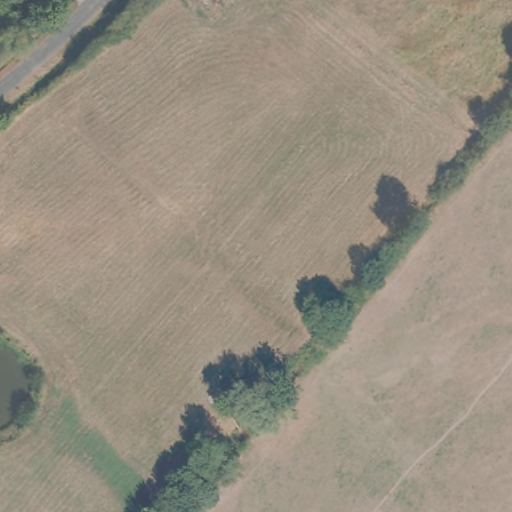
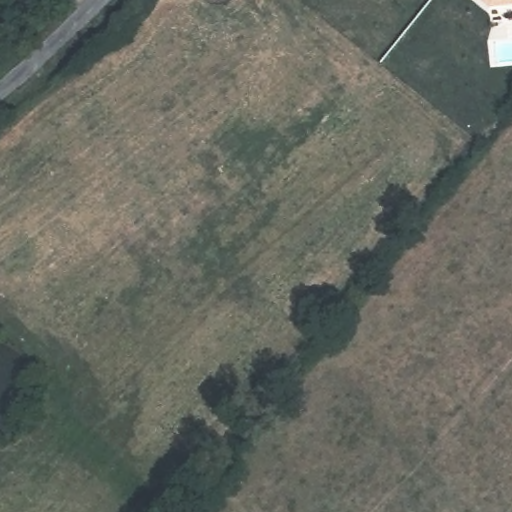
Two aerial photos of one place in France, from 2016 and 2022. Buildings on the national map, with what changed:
new [(490,8),(480,0),(512,0),(512,6),(490,8)]

